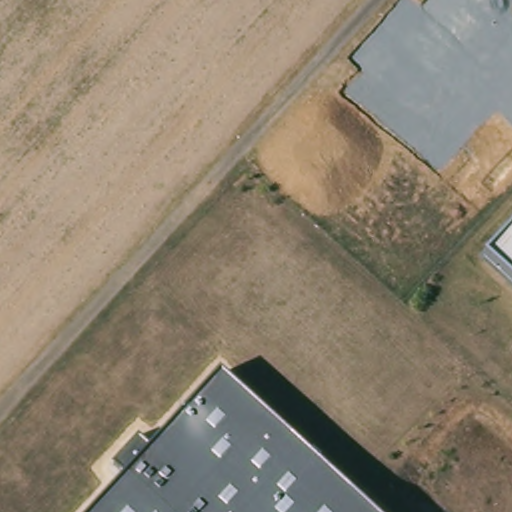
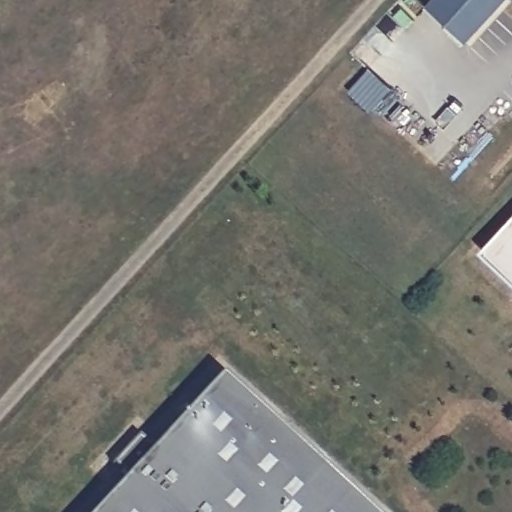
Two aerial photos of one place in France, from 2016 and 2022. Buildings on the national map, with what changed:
new [(503,0),(464,44),(425,7),(431,0),(503,0)]
unchanged [(512,225),(512,280),(485,255),(512,225)]
unchanged [(221,375),(369,512),(94,512),(221,375)]

